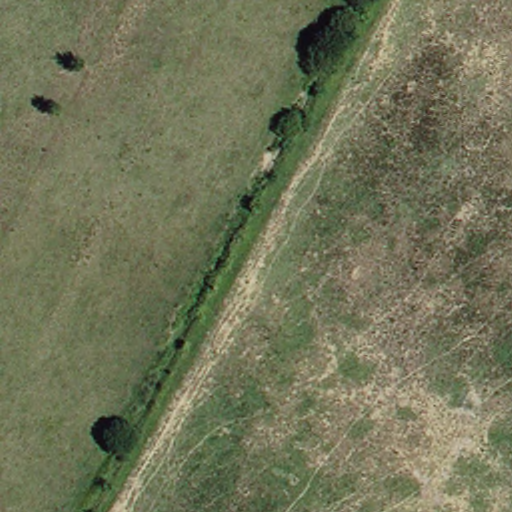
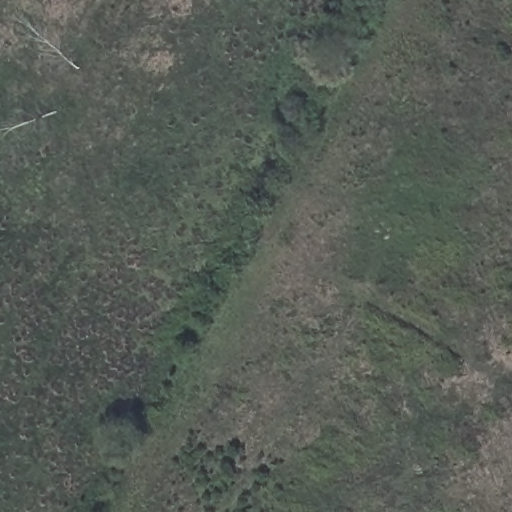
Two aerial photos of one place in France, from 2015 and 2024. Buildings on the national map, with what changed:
[]

